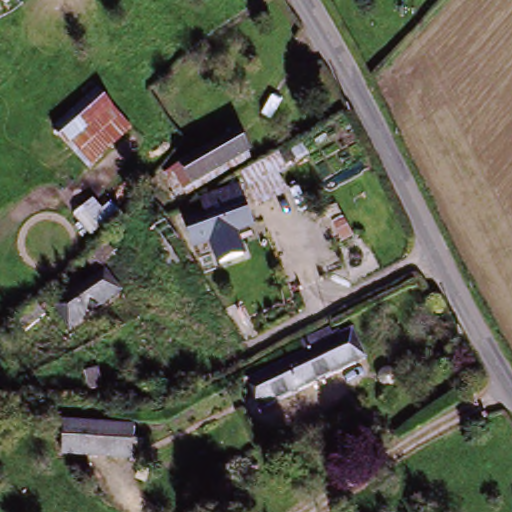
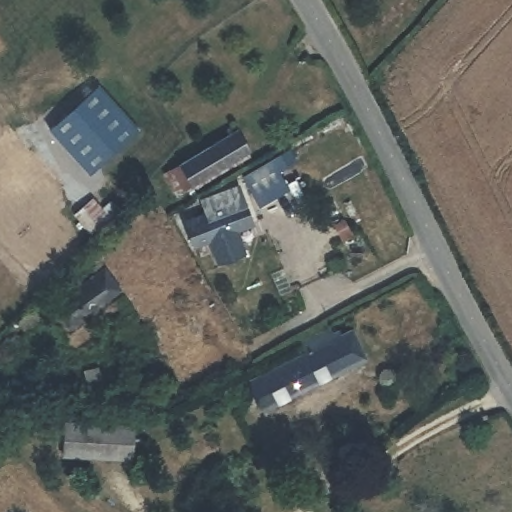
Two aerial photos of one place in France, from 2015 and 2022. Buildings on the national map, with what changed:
unchanged [(88,171),(50,130),(95,87),(130,130),(88,171)]
unchanged [(167,173),(220,137),(232,155),(180,191),(167,199),(155,182),(167,173)]
unchanged [(193,246),(184,223),(241,202),(250,224),(193,246)]
unchanged [(93,246),(86,238),(100,225),(108,217),(115,225),(93,246)]
unchanged [(71,323),(55,301),(105,266),(121,288),(71,323)]
unchanged [(369,362),(270,411),(255,382),(355,333),(369,362)]
unchanged [(63,453),(68,421),(134,431),(130,463),(63,453)]

